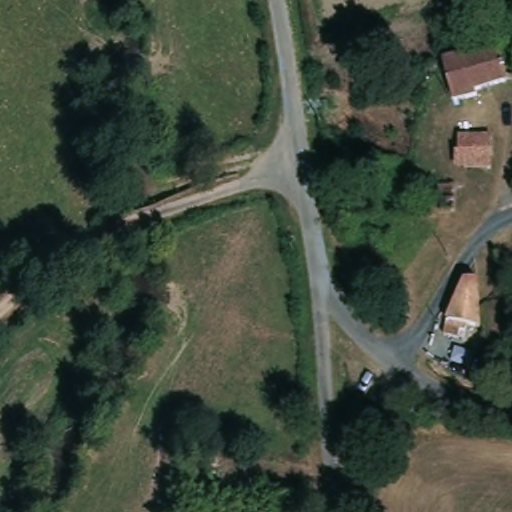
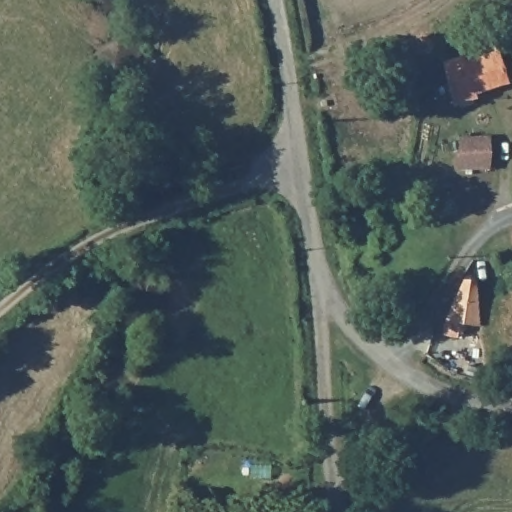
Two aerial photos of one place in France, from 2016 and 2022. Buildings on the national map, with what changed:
unchanged [(465,55),(466,60),(496,50),(510,81),(477,91),(477,96),(453,103),(443,61),(465,55)]
unchanged [(457,151),(460,151),(460,136),(492,136),(492,152),(491,169),(456,167),(457,151)]
unchanged [(455,185),(454,211),(438,211),(438,206),(438,184),(455,185)]
unchanged [(501,271),(492,243),(512,233),(512,268),(501,271)]
unchanged [(459,325),(457,334),(442,331),(446,316),(447,310),(465,268),(476,268),(481,315),(480,323),(467,320),(465,320),(463,326),(459,325)]

